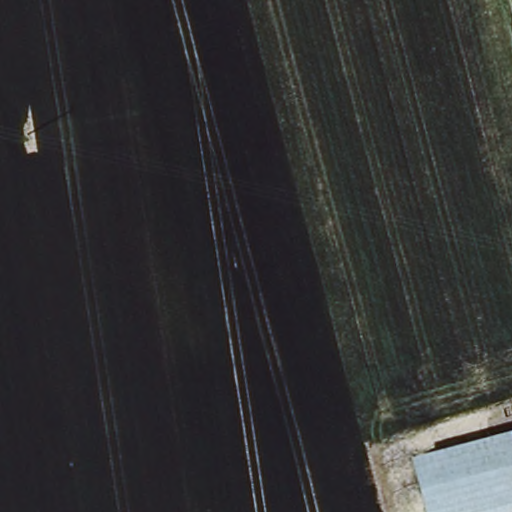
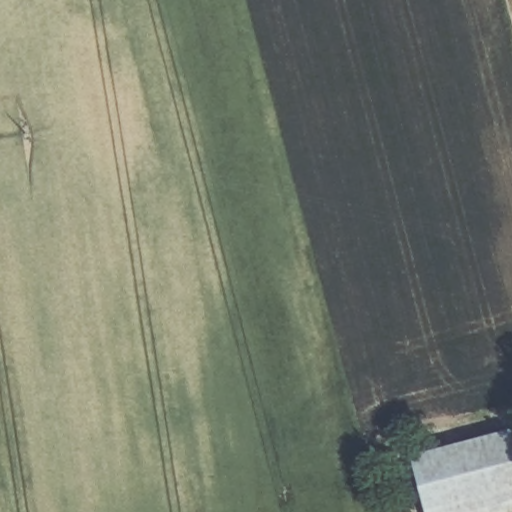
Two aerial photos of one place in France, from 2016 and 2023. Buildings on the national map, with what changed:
unchanged [(431,512),(419,460),(510,442),(512,449),(512,512),(431,512)]

